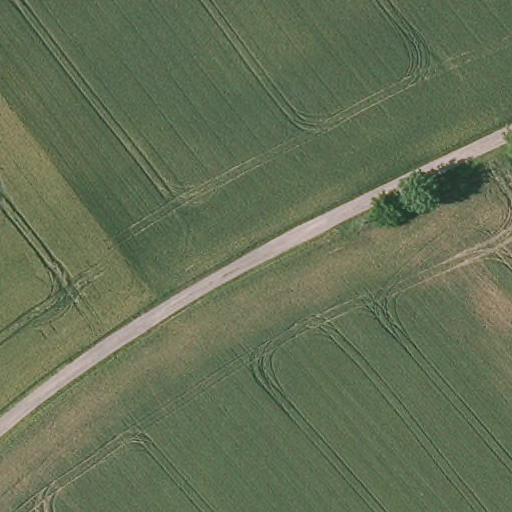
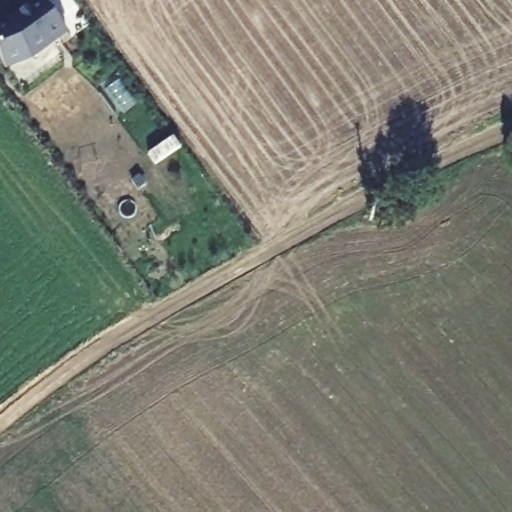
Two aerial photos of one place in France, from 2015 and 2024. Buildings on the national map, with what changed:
new [(32,60),(5,70),(0,55),(0,21),(8,18),(33,0),(42,0),(68,34),(32,60)]

